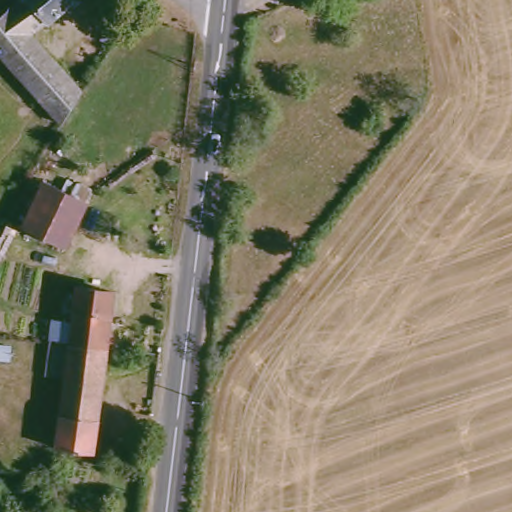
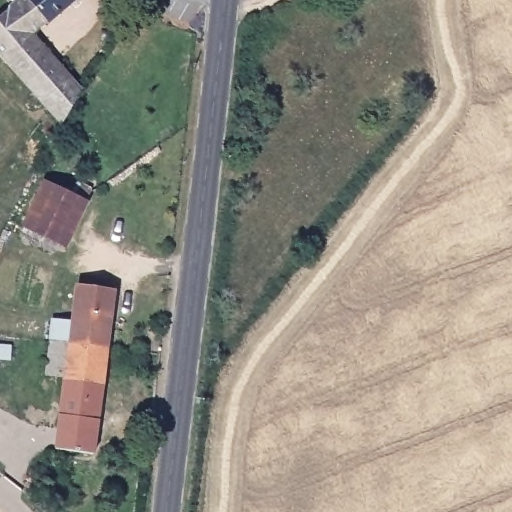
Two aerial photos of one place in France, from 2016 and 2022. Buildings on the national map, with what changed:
unchanged [(53,25),(49,22),(37,32),(87,91),(66,127),(0,52),(0,19),(23,0),(82,0),(53,25)]
unchanged [(89,208),(69,247),(29,227),(49,186),(89,208)]
unchanged [(84,287),(124,291),(115,352),(75,347),(84,287)]
unchanged [(115,352),(101,449),(61,444),(75,347),(115,352)]

